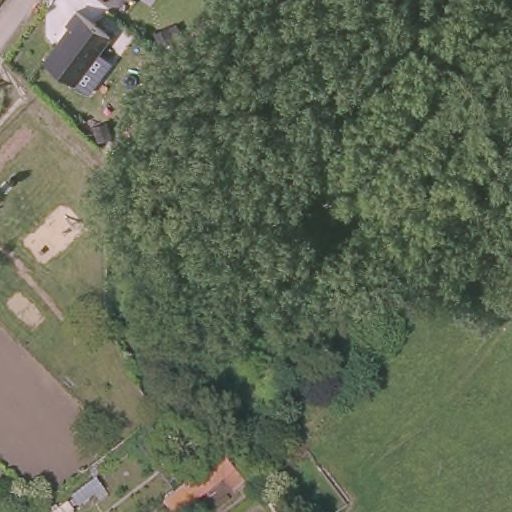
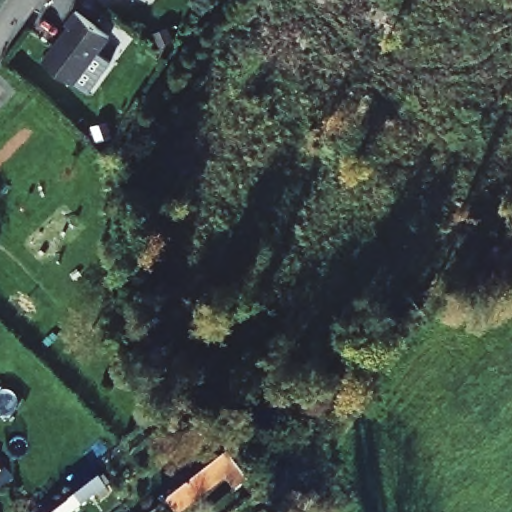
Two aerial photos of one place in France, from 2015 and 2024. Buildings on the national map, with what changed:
unchanged [(74,12),(107,38),(70,85),(40,62),(67,27),(64,25),(74,12)]
unchanged [(231,461),(243,476),(237,481),(227,468),(173,510),(162,497),(214,456),(222,450),(231,461)]

